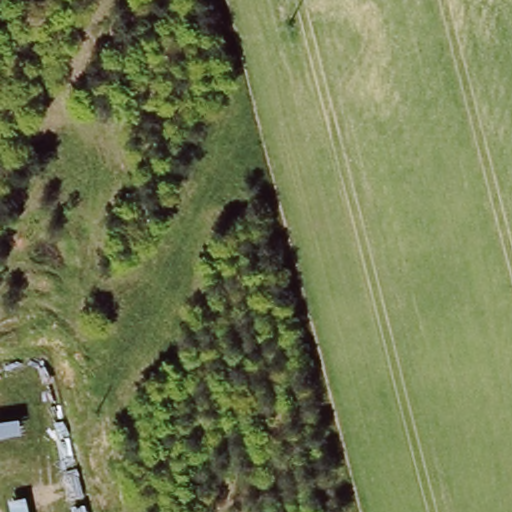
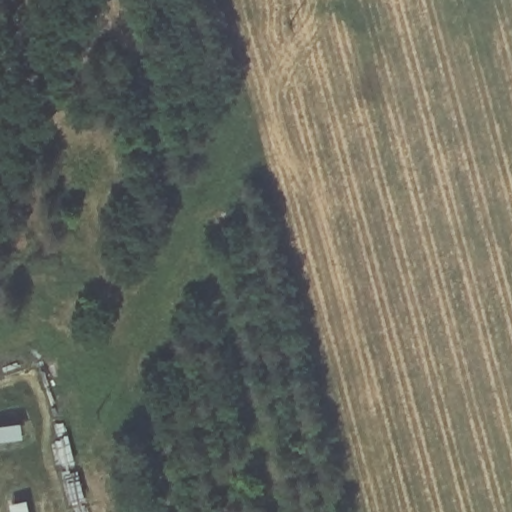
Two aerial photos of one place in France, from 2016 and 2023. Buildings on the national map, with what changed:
unchanged [(15,432),(0,434),(0,420),(12,418),(15,432)]
unchanged [(25,512),(4,512),(2,502),(22,496),(25,512)]

